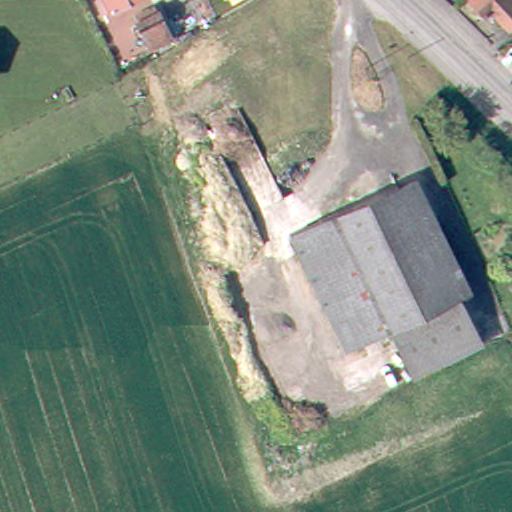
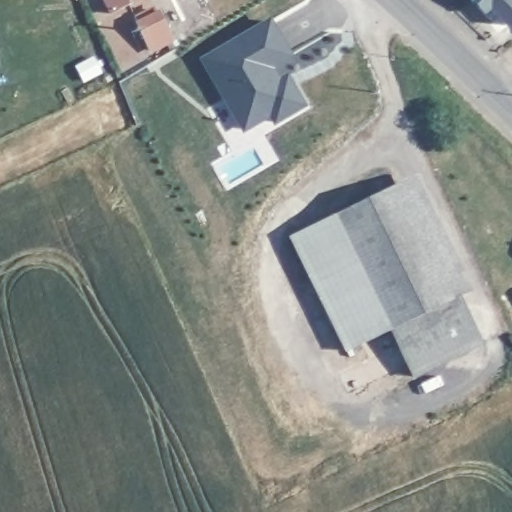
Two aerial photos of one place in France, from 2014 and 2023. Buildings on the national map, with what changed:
unchanged [(112,13),(105,0),(139,0),(112,13)]
unchanged [(490,6),(483,0),(512,0),(512,18),(494,1),(490,6)]
unchanged [(151,55),(141,34),(135,21),(154,11),(162,27),(171,45),(151,55)]
new [(279,77),(288,72),(306,107),(273,125),(269,118),(242,133),(200,58),(271,17),(292,59),(275,69),(279,77)]
unchanged [(338,214),(403,181),(481,343),(414,376),(390,330),(338,214)]
unchanged [(338,214),(390,330),(346,351),(290,237),(338,214)]

